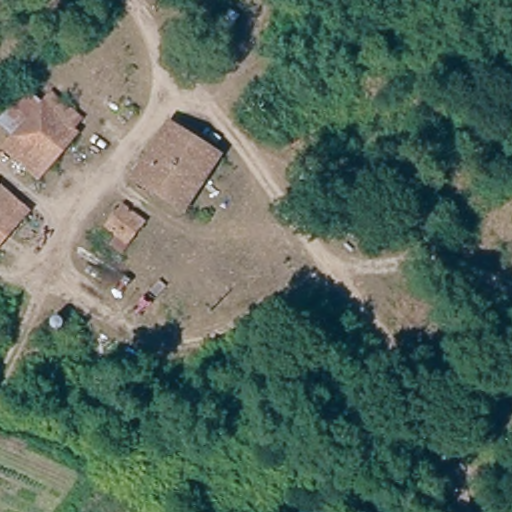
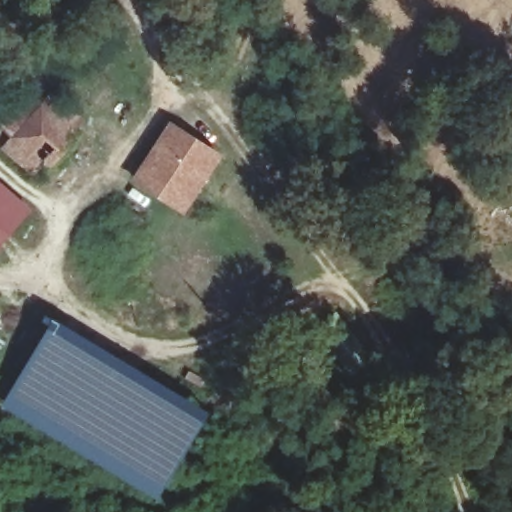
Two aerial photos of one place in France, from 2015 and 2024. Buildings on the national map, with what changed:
unchanged [(0,145),(0,142),(48,88),(77,114),(68,124),(72,128),(33,173),(0,145)]
unchanged [(171,124),(219,156),(184,210),(135,177),(171,124)]
new [(30,212),(0,186),(0,180),(33,208),(30,212)]
unchanged [(0,245),(0,186),(30,212),(0,245)]
unchanged [(140,227),(123,248),(101,231),(118,210),(140,227)]
new [(209,411),(156,499),(1,404),(52,317),(209,411)]

